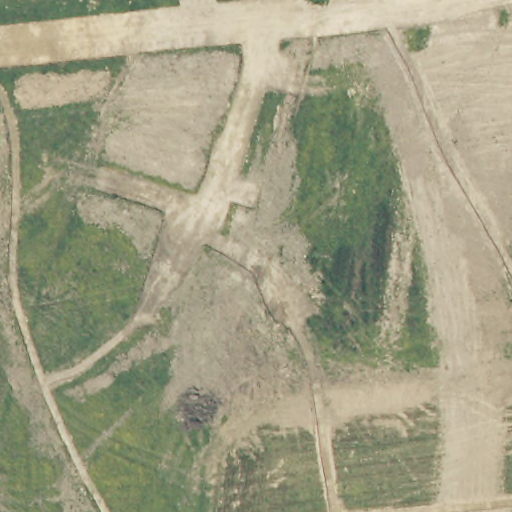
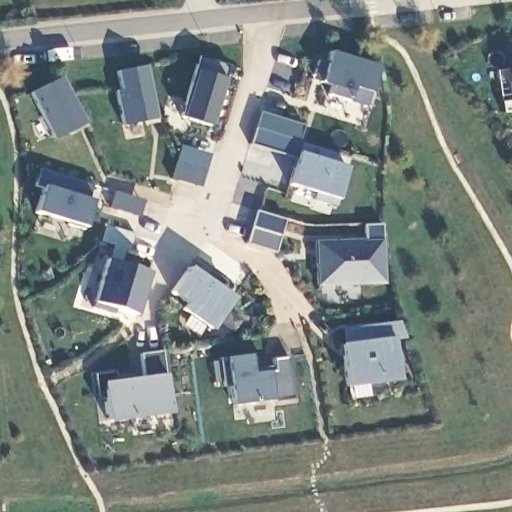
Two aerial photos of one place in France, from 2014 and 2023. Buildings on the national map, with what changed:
new [(379,67),(368,106),(329,95),(328,86),(312,81),(318,59),(324,62),(329,51),(379,67)]
new [(179,116),(199,57),(228,65),(221,77),(224,78),(210,126),(179,116)]
new [(114,91),(120,90),(116,71),(145,65),(156,118),(121,125),(114,91)]
new [(508,69),(512,68),(512,95),(508,69)]
new [(86,123),(54,140),(29,93),(60,77),(86,123)]
new [(504,112),(502,102),(512,100),(512,110),(504,112)]
new [(260,112),(303,125),(298,140),(335,152),(332,162),(348,167),(338,199),(289,182),(296,157),(250,144),(260,112)]
new [(177,161),(207,170),(202,187),(172,177),(177,161)]
new [(43,189),(34,186),(39,167),(91,183),(88,197),(93,199),(84,227),(36,212),(43,189)]
new [(114,191),(144,200),(139,217),(109,207),(114,191)]
new [(256,209),(287,218),(281,235),(276,252),(246,242),(251,226),(256,209)]
new [(315,240),(365,239),(364,225),(382,224),(384,283),(317,286),(315,240)]
new [(93,303),(106,258),(149,271),(135,315),(93,303)]
new [(234,297),(223,312),(236,318),(226,334),(213,327),(211,330),(179,310),(184,303),(169,294),(189,267),(234,297)]
new [(339,343),(341,343),(341,328),(398,321),(404,338),(393,339),(399,381),(346,387),(339,343)]
new [(100,386),(94,387),(93,373),(114,372),(113,380),(140,376),(140,353),(160,351),(161,373),(165,373),(170,413),(107,422),(100,386)]
new [(233,404),(226,358),(249,355),(251,372),(268,371),(274,371),(274,358),(287,358),(292,399),(272,402),(272,400),(233,404)]

